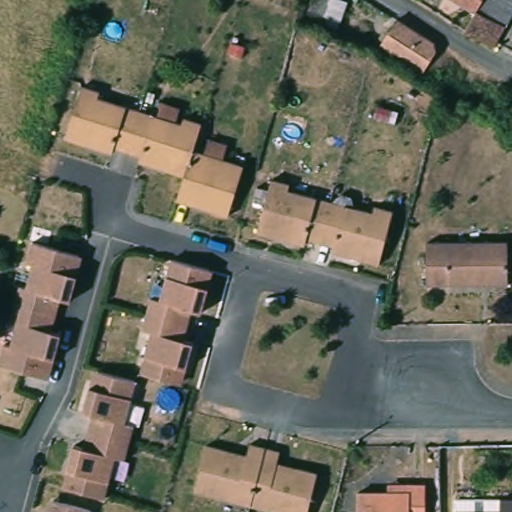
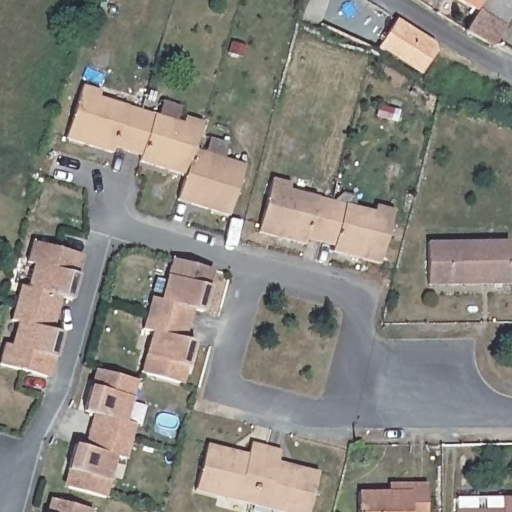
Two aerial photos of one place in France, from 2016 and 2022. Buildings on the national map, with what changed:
unchanged [(478,0),(472,10),(470,10),(470,11),(452,0),(478,0)]
unchanged [(470,10),(472,10),(478,0),(512,0),(512,4),(489,46),(462,32),(459,30),(470,11),(470,10)]
unchanged [(418,71),(374,45),(390,20),(401,26),(435,47),(418,71)]
unchanged [(97,89),(95,97),(180,122),(182,115),(201,120),(192,145),(242,163),(225,211),(175,196),(183,172),(136,157),(138,151),(110,142),(108,149),(63,134),(78,82),(97,89)]
unchanged [(374,265),(328,252),(329,246),(302,239),(299,245),(252,231),(267,178),(287,184),(285,190),(368,211),(369,205),(389,211),(374,265)]
unchanged [(507,282),(426,285),(425,244),(506,241),(507,282)]
unchanged [(4,345),(10,346),(17,323),(10,322),(19,288),(25,290),(32,265),(26,263),(31,243),(81,256),(70,301),(60,300),(52,331),(62,334),(49,381),(0,364),(0,361),(4,345)]
unchanged [(197,308),(193,325),(152,312),(157,296),(166,299),(177,258),(199,264),(213,268),(218,269),(214,286),(207,311),(197,308)]
unchanged [(182,386),(145,376),(156,335),(147,332),(152,312),(193,325),(188,342),(198,345),(191,370),(187,387),(182,386)]
unchanged [(84,410),(91,385),(96,368),(101,370),(138,381),(125,421),(134,425),(128,444),(88,430),(93,413),(84,410)]
unchanged [(66,468),(73,443),(83,446),(88,430),(128,444),(123,460),(114,457),(101,498),(65,486),(60,485),(66,468)]
unchanged [(301,512),(279,512),(190,487),(202,443),(221,447),(241,453),(244,443),(275,451),(272,461),(293,466),(311,472),(301,512)]
unchanged [(356,494),(387,493),(387,485),(408,485),(423,485),(423,512),(356,512),(356,494)]
unchanged [(46,496),(51,497),(87,509),(86,512),(41,512),(46,496)]
unchanged [(453,511),(453,500),(500,499),(512,499),(512,512),(453,512),(453,511)]

